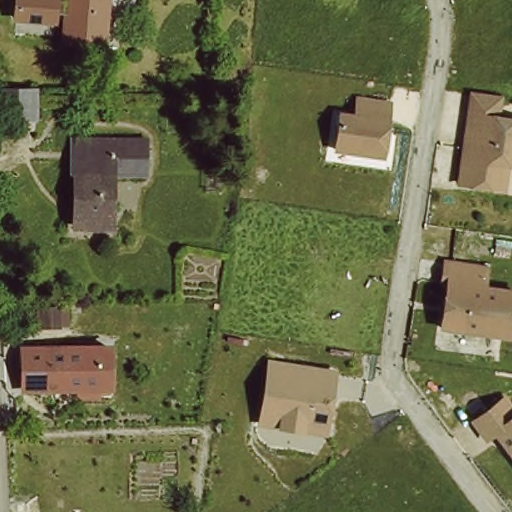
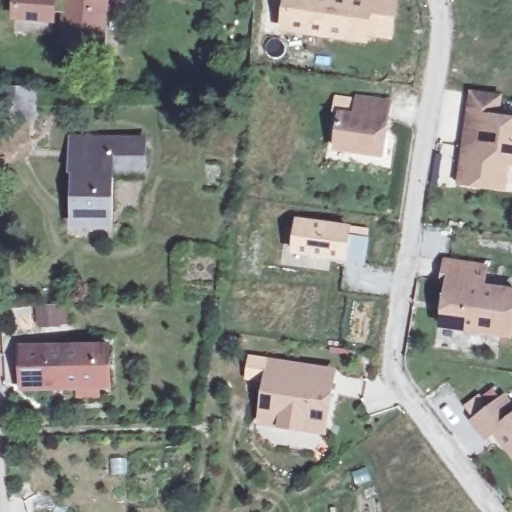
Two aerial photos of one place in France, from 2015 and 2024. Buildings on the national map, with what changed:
unchanged [(62,23),(16,23),(18,0),(62,0),(62,23)]
unchanged [(108,46),(68,46),(68,0),(109,0),(108,46)]
new [(281,32),(285,0),(399,0),(394,42),(369,39),(368,46),(281,32)]
unchanged [(472,92),(499,96),(496,116),(512,118),(512,162),(506,161),(502,186),(459,179),(472,92)]
unchanged [(33,95),(34,122),(26,122),(2,124),(0,96),(25,96),(33,95)]
unchanged [(338,117),(354,119),(356,101),(389,105),(381,157),(334,152),(338,117)]
unchanged [(104,173),(103,222),(71,221),(72,149),(72,139),(143,139),(143,146),(142,172),(104,173)]
new [(347,263),(292,254),(298,217),(354,226),(352,236),(372,239),(366,267),(347,263)]
unchanged [(481,264),(478,285),(512,288),(512,292),(507,333),(437,325),(443,281),(436,280),(440,258),(481,264)]
unchanged [(101,347),(112,346),(114,387),(103,387),(66,390),(64,349),(101,347)]
unchanged [(66,390),(24,391),(22,347),(64,349),(66,390)]
unchanged [(340,370),(330,436),(259,426),(269,358),(340,370)]
unchanged [(476,422),(506,400),(512,406),(512,450),(498,432),(489,438),(476,422)]
unchanged [(8,489),(6,473),(16,472),(17,488),(8,489)]

